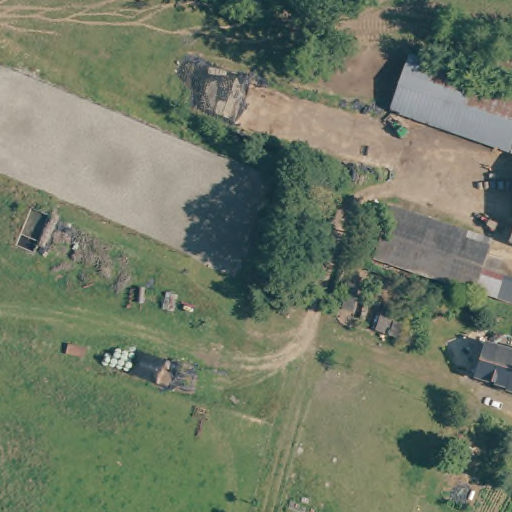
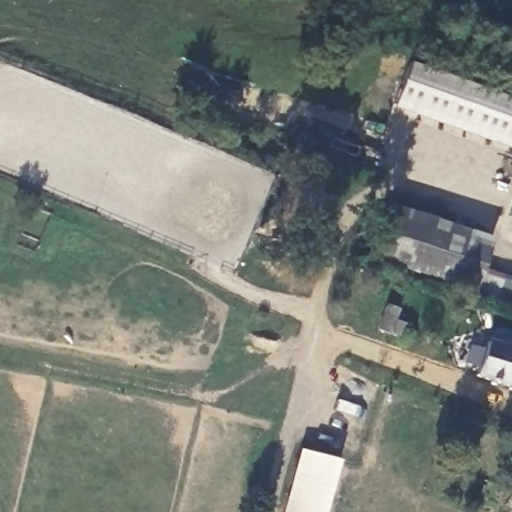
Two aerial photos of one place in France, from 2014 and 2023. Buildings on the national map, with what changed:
unchanged [(512,86),(512,152),(394,108),(414,51),(512,86)]
unchanged [(381,246),(392,207),(492,240),(479,278),(381,246)]
unchanged [(506,246),(512,227),(512,248),(506,246)]
unchanged [(507,389),(508,385),(474,375),(482,342),(512,351),(512,390),(507,389)]
new [(340,461),(326,512),(282,512),(300,450),(340,461)]

